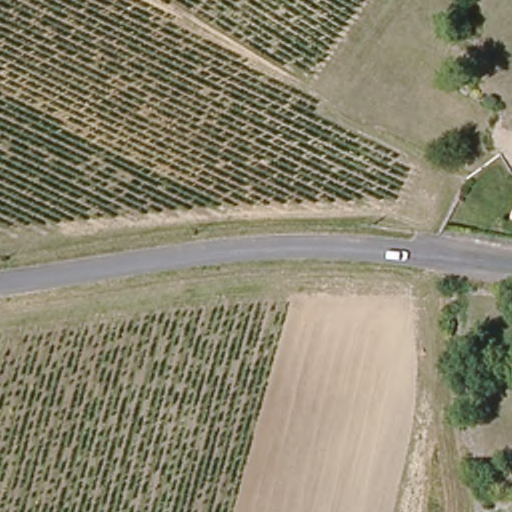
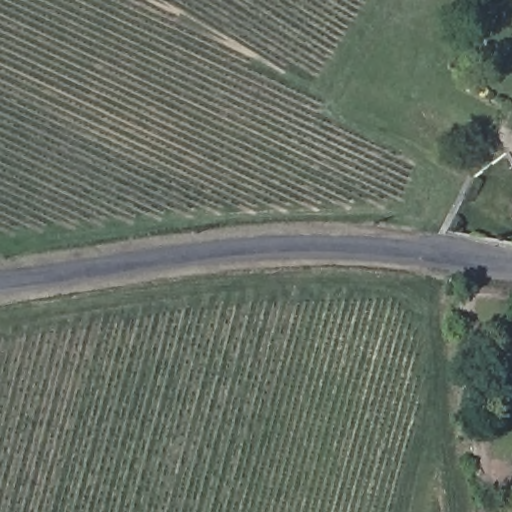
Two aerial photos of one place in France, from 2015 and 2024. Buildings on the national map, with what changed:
unchanged [(512,112),(512,126),(505,122),(512,112)]

